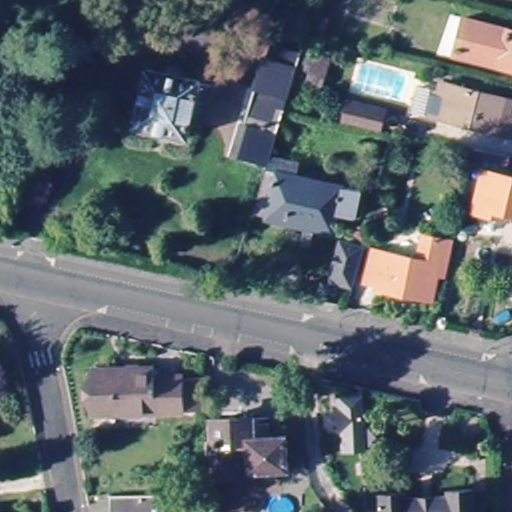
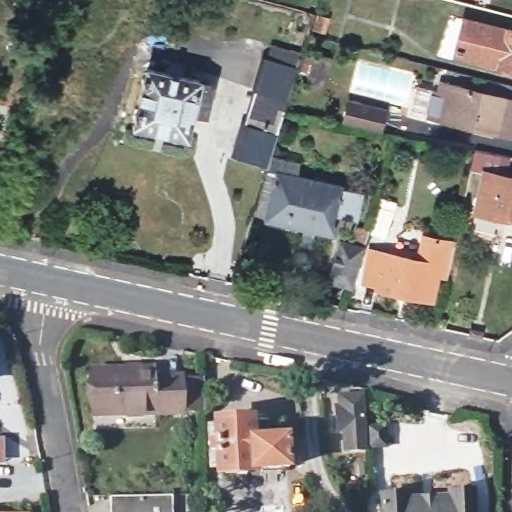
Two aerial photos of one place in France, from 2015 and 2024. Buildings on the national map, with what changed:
unchanged [(497,62),(453,51),(462,20),(512,32),(512,71),(496,68),(497,62)]
unchanged [(294,75),(279,119),(263,167),(232,157),(242,126),(245,125),(267,59),(271,48),(283,52),(300,58),(294,75)]
unchanged [(310,95),(296,92),(305,62),(318,66),(310,95)]
unchanged [(166,69),(180,72),(179,79),(197,83),(197,86),(208,89),(202,116),(190,114),(183,140),(132,127),(145,72),(164,76),(166,69)]
unchanged [(512,139),(425,118),(431,92),(438,94),(441,85),(502,99),(512,102),(512,139)]
unchanged [(363,110),(390,116),(387,132),(360,126),(363,110)]
unchanged [(479,228),(487,190),(472,187),(477,164),(512,171),(507,191),(512,192),(512,235),(510,234),(479,228)]
unchanged [(276,167),(345,183),(345,187),(360,190),(353,213),(338,210),(333,231),(313,226),(310,240),(300,238),(303,224),(265,214),(265,208),(255,206),(267,168),(275,170),(276,167)]
unchanged [(345,285),(323,278),(337,237),(350,240),(355,223),(364,226),(353,259),(345,285)]
unchanged [(372,291),(372,287),(358,284),(366,251),(408,260),(413,238),(447,246),(445,259),(440,278),(431,275),(424,303),(372,291)]
unchanged [(155,367),(156,377),(181,376),(182,378),(201,377),(202,408),(183,409),(182,412),(94,416),(92,371),(155,367)]
unchanged [(387,443),(365,444),(365,448),(343,449),(341,429),(336,429),(333,407),(338,406),(337,394),(362,393),(363,419),(386,418),(387,443)]
unchanged [(248,422),(249,428),(267,427),(268,440),(286,440),(287,471),(215,476),(212,424),(248,422)]
unchanged [(403,492),(403,498),(447,496),(448,489),(472,488),(474,512),(378,512),(377,493),(403,492)]
unchanged [(109,512),(109,493),(170,492),(171,512),(109,512)]

